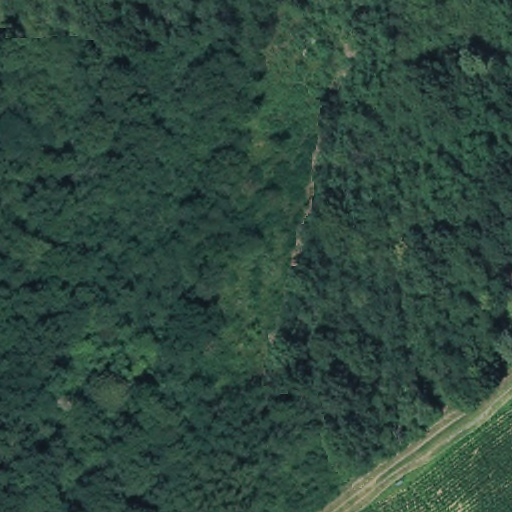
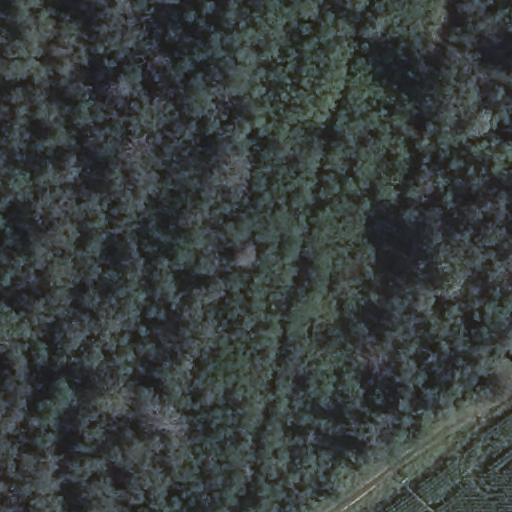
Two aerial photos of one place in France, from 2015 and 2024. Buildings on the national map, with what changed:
unchanged [(512,254),(512,281),(505,279),(512,254)]

